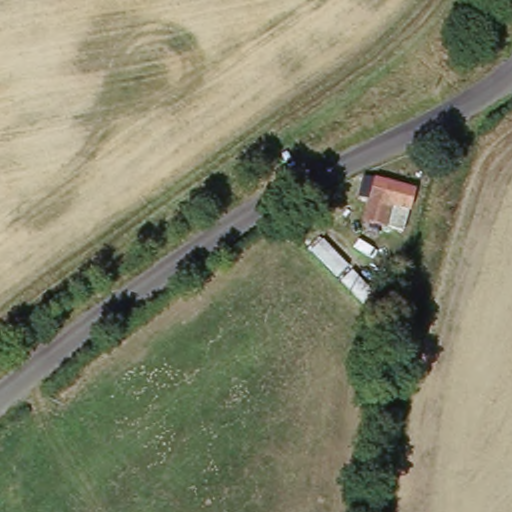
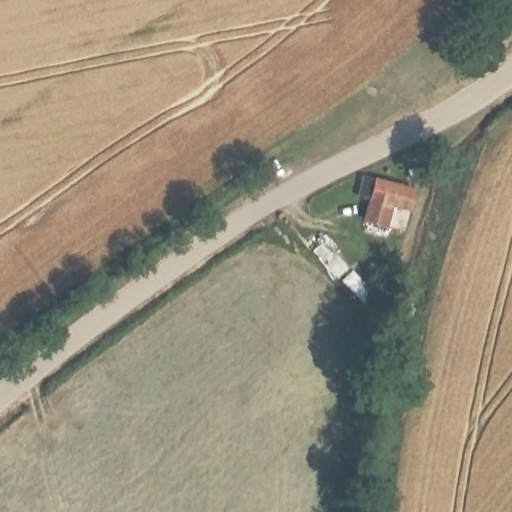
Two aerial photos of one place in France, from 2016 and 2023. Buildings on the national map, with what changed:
unchanged [(365,224),(370,203),(360,201),(366,178),(417,189),(408,237),(365,224)]
unchanged [(367,309),(311,254),(324,240),(377,299),(367,309)]

